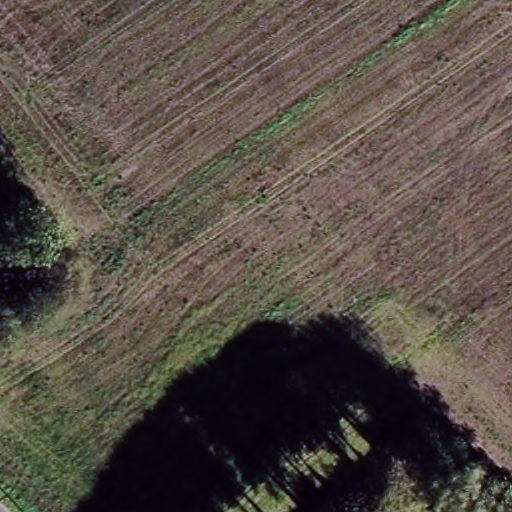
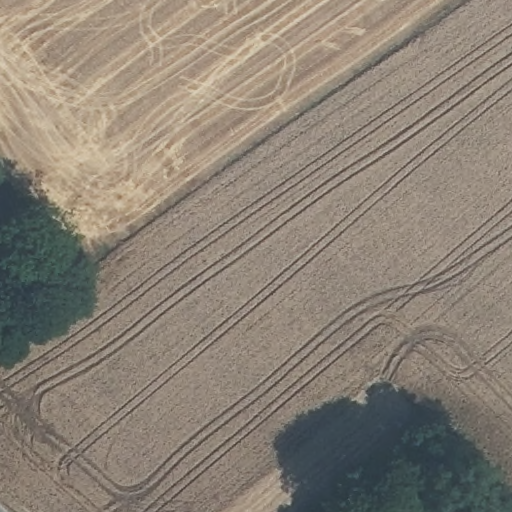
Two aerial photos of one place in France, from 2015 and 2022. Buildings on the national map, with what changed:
unchanged [(24,231),(46,263),(27,277),(5,244),(24,231)]

